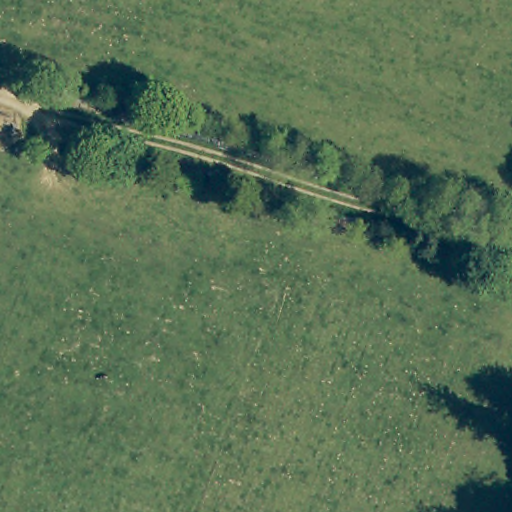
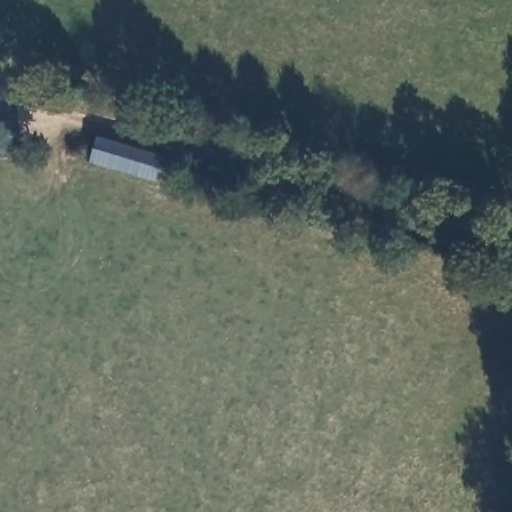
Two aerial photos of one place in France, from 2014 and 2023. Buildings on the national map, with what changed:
new [(97,135),(165,155),(156,180),(91,160),(97,135)]

